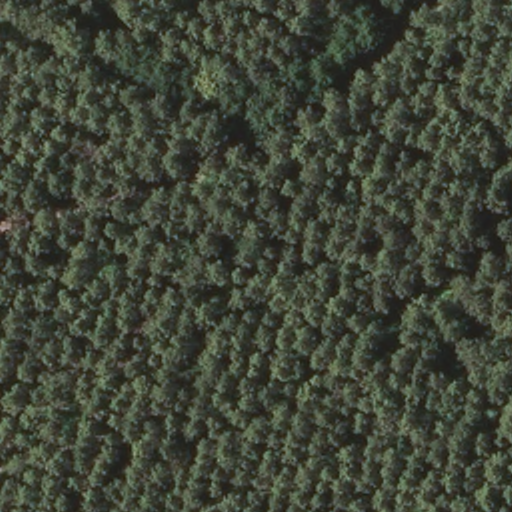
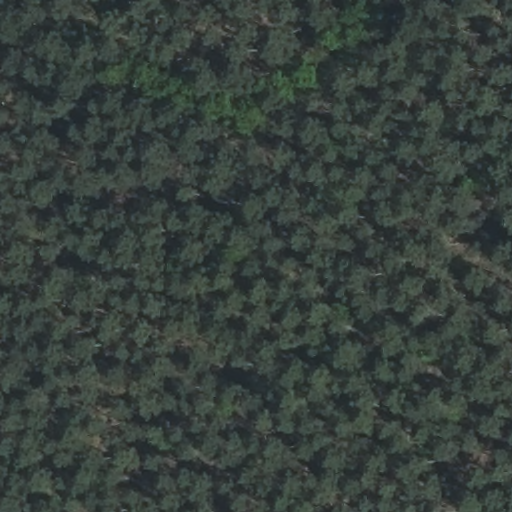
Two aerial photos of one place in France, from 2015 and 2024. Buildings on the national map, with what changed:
[]

